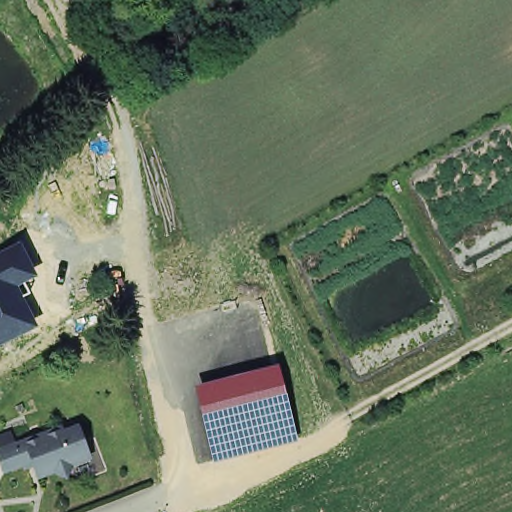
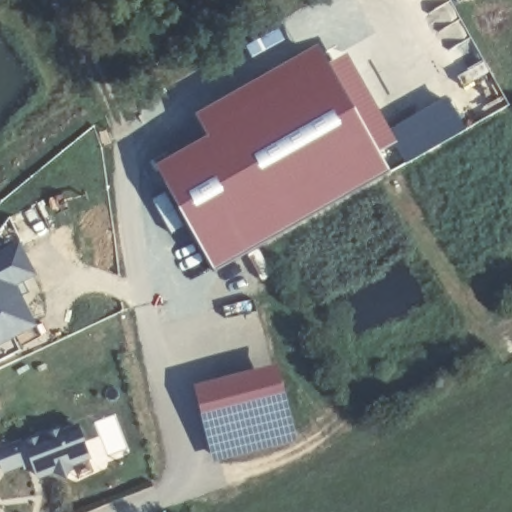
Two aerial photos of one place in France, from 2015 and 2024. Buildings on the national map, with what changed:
new [(154,166),(205,136),(193,114),(318,45),(329,63),(347,52),(390,128),(398,144),(394,147),(382,154),(392,171),(215,272),(185,225),(171,233),(151,200),(167,190),(154,166)]
new [(447,96),(467,129),(405,165),(394,147),(398,144),(390,128),(447,96)]
unchanged [(20,242),(37,274),(23,282),(27,293),(22,297),(37,327),(0,347),(0,252),(20,242)]
unchanged [(195,386),(278,366),(295,442),(215,460),(195,386)]
unchanged [(73,466),(67,479),(55,473),(40,478),(35,465),(28,468),(26,465),(5,472),(0,458),(0,453),(63,431),(65,435),(80,430),(90,460),(73,466)]

